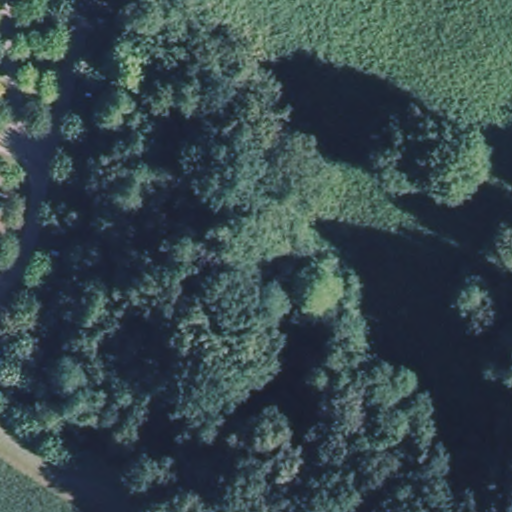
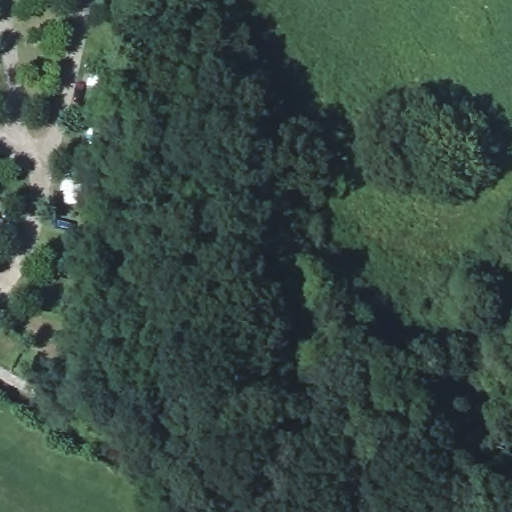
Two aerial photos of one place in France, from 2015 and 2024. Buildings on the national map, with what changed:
[]

